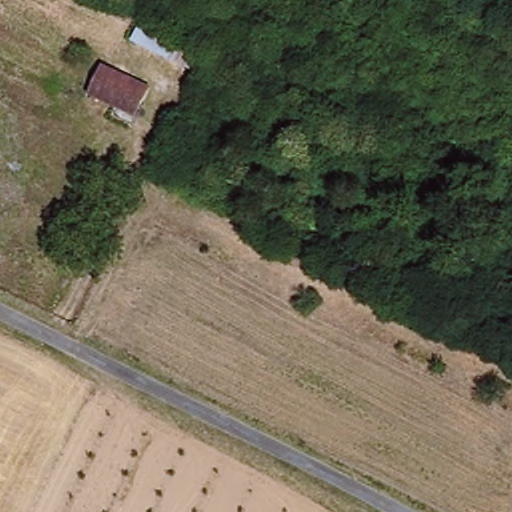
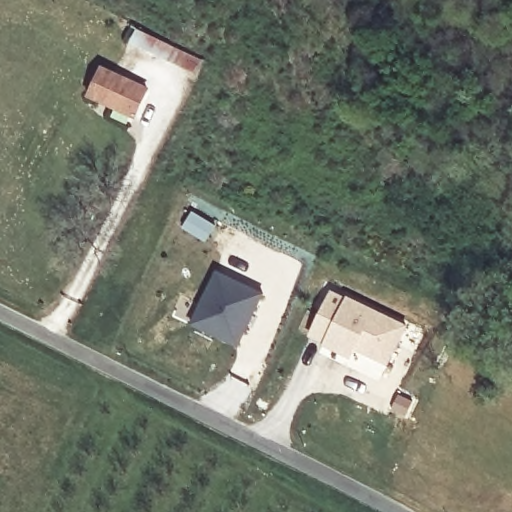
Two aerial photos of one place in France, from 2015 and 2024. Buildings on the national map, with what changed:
unchanged [(132,30),(192,58),(186,70),(127,41),(132,30)]
unchanged [(149,89),(136,116),(93,96),(105,67),(149,89)]
new [(220,336),(191,322),(213,272),(260,293),(244,328),(236,345),(220,336)]
new [(331,291),(346,298),(347,296),(407,325),(389,362),(358,347),(353,356),(325,343),(340,313),(325,305),(331,291)]

